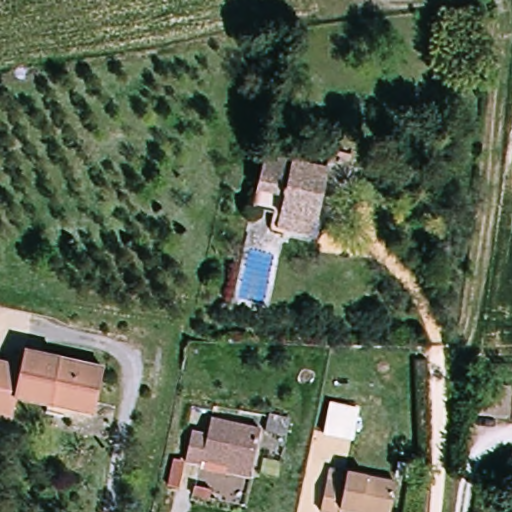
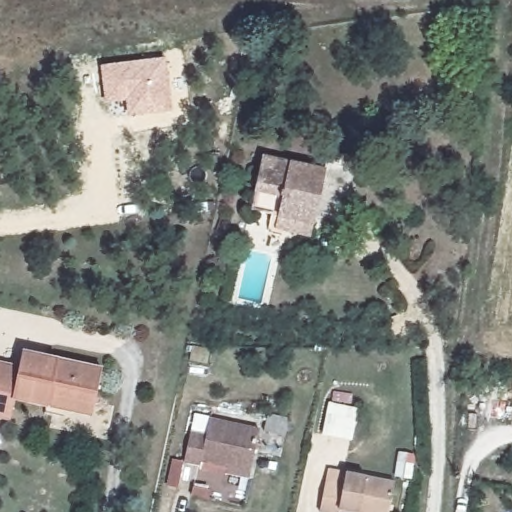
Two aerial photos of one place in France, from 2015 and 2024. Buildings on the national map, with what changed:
new [(173,111),(128,116),(126,101),(106,104),(101,65),(167,58),(173,111)]
unchanged [(337,165),(327,218),(258,206),(268,153),(337,165)]
unchanged [(51,407),(20,398),(15,396),(23,367),(29,346),(109,370),(98,408),(94,419),(51,407)]
unchanged [(349,347),(372,347),(369,368),(345,363),(349,347)]
unchanged [(23,367),(15,396),(20,398),(14,419),(0,416),(0,361),(23,367)]
unchanged [(231,476),(233,464),(207,458),(206,466),(188,462),(195,428),(214,432),(218,415),(266,426),(257,470),(254,484),(231,476)]
unchanged [(340,511),(323,507),(333,465),(402,481),(394,512),(379,512),(375,511),(375,512),(339,512),(340,511)]

